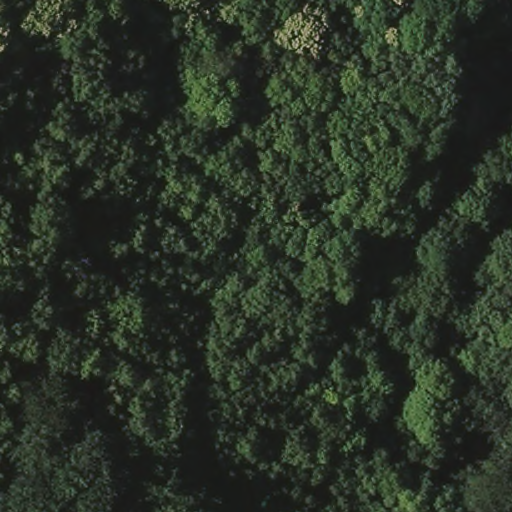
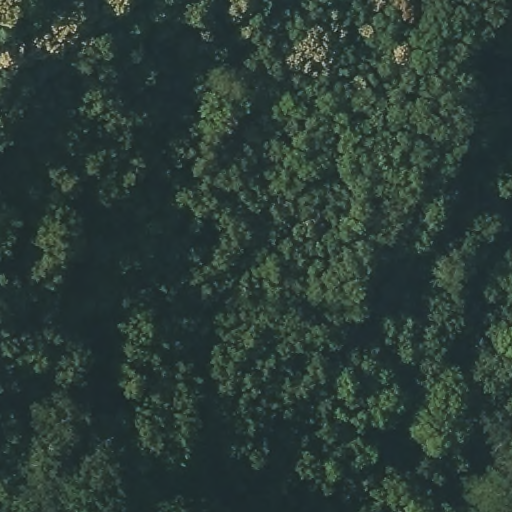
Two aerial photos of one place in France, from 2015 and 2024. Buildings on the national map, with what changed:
[]

